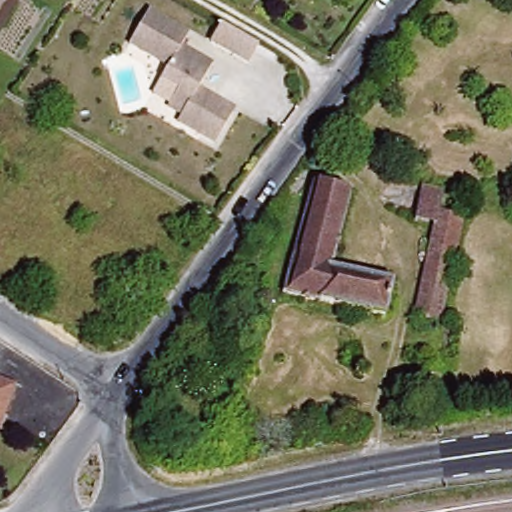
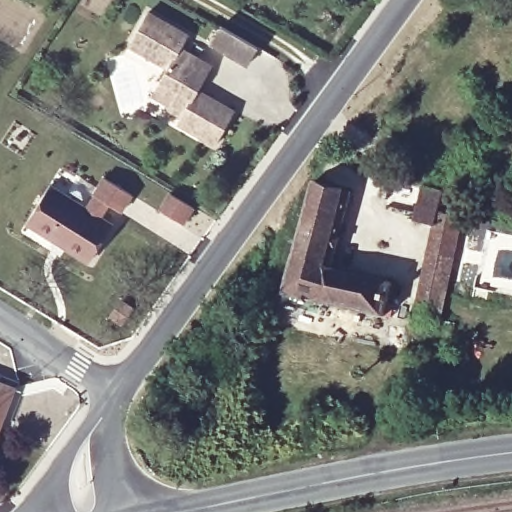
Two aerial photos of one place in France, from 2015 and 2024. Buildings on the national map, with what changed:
unchanged [(216,142),(178,121),(183,111),(170,102),(178,87),(161,77),(168,65),(129,43),(148,10),(188,31),(181,45),(213,64),(198,87),(235,109),(216,142)]
unchanged [(248,66),(211,45),(221,27),(258,50),(248,66)]
new [(44,190),(81,212),(92,195),(90,195),(101,177),(129,195),(118,211),(105,204),(98,217),(110,225),(89,260),(50,237),(48,240),(23,225),(44,190)]
unchanged [(347,193),(330,270),(391,285),(383,321),(284,298),(310,185),(347,193)]
unchanged [(408,224),(419,189),(442,194),(438,214),(463,219),(437,325),(411,320),(429,227),(408,224)]
new [(168,192),(191,206),(181,224),(158,210),(168,192)]
unchanged [(12,391),(0,423),(0,386),(12,391)]

